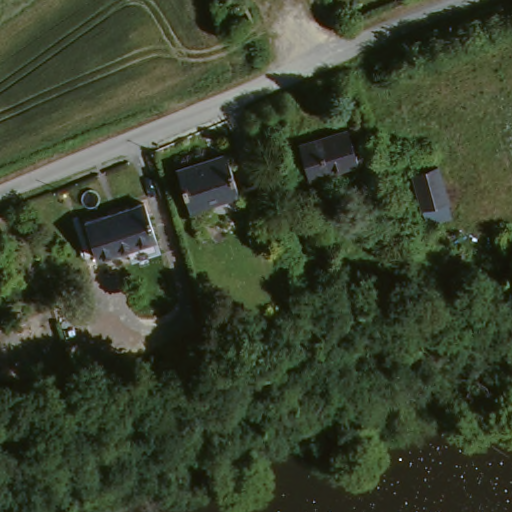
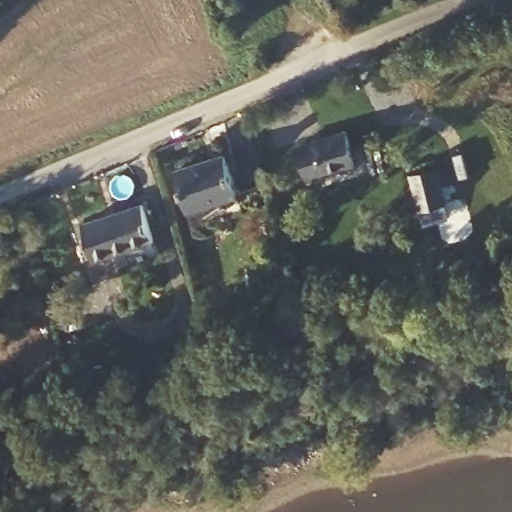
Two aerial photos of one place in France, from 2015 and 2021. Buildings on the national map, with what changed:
unchanged [(295,149),(345,133),(351,146),(361,144),(365,163),(356,165),(305,183),(295,149)]
unchanged [(195,225),(192,214),(176,173),(227,154),(242,198),(212,208),(216,219),(195,225)]
unchanged [(420,227),(417,214),(408,178),(435,172),(443,208),(447,223),(420,227)]
unchanged [(129,258),(122,244),(92,254),(77,217),(137,197),(157,248),(129,258)]

